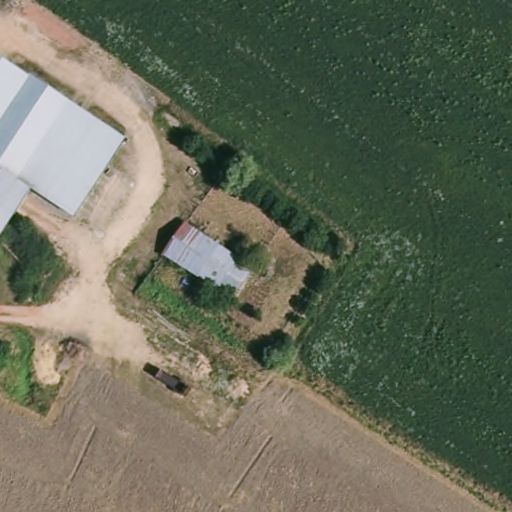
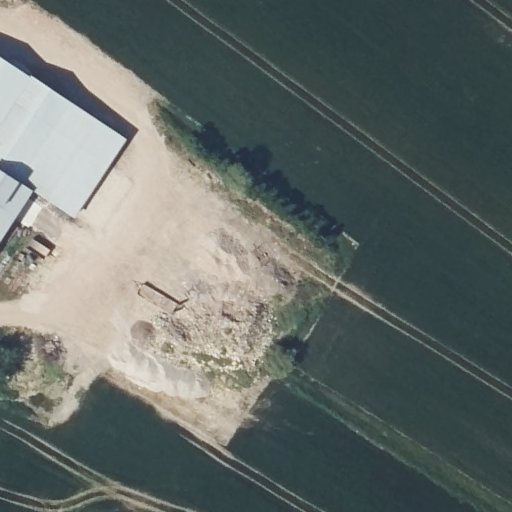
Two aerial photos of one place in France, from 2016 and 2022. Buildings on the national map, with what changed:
unchanged [(0,60),(128,141),(81,219),(30,187),(4,170),(0,168),(0,60)]
unchanged [(30,187),(26,194),(16,209),(0,235),(0,168),(4,170),(30,187)]
demolished [(179,222),(251,269),(230,303),(156,255),(179,222)]

